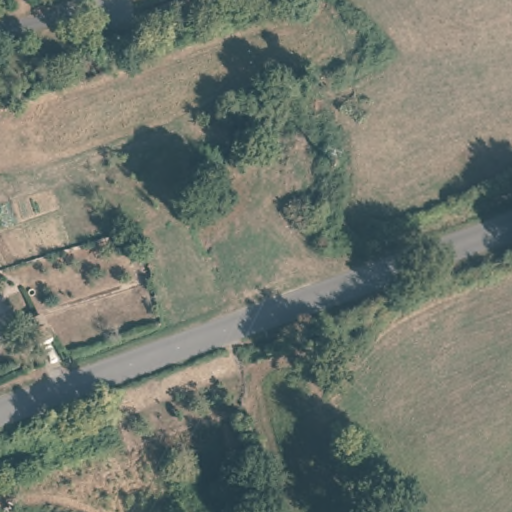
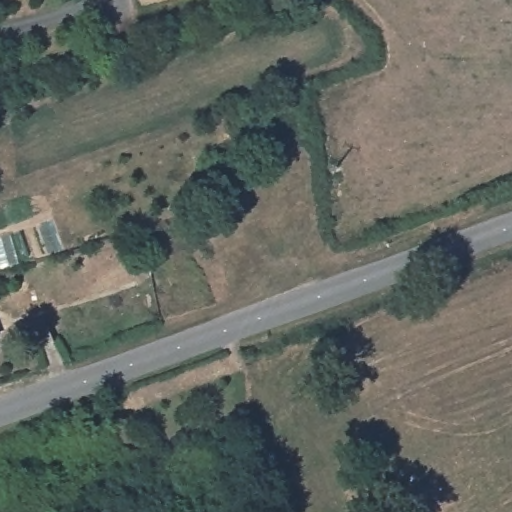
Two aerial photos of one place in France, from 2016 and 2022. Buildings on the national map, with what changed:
unchanged [(54,341),(39,347),(31,324),(45,318),(54,341)]

